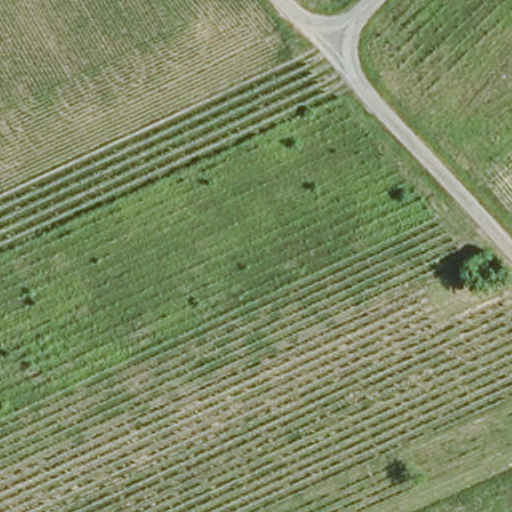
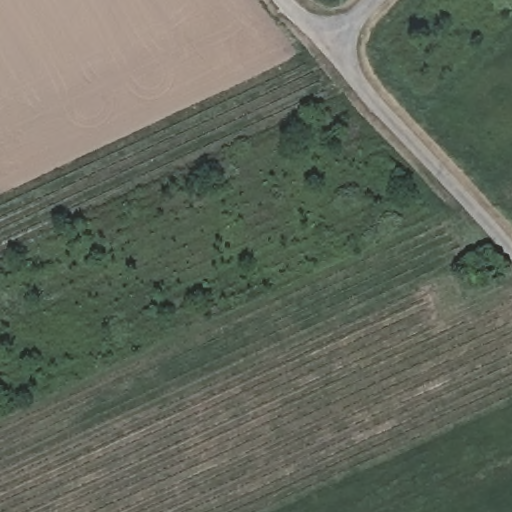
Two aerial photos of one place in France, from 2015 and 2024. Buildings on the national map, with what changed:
unchanged [(505,268),(472,284),(460,265),(490,251),(505,268)]

